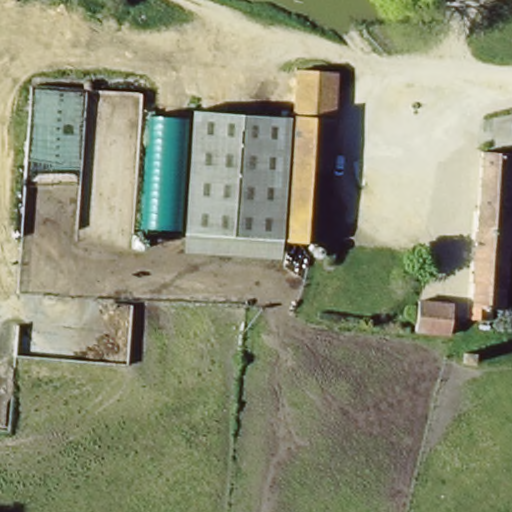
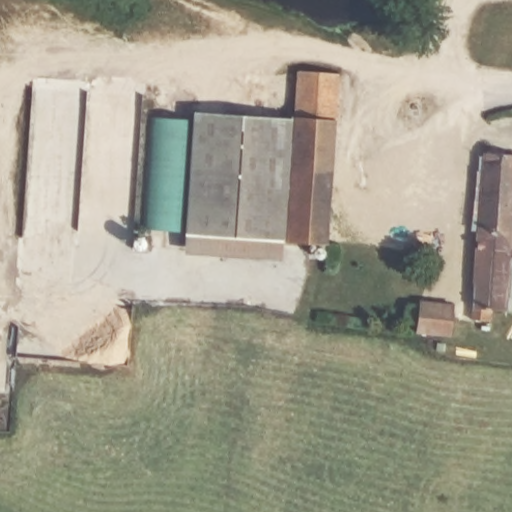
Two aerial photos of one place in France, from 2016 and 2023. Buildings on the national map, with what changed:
unchanged [(302,115),(303,76),(328,77),(327,117),(333,117),(324,240),(254,233),(264,113),(302,115)]
unchanged [(245,112),(235,231),(190,227),(197,109),(245,112)]
unchanged [(254,233),(235,231),(245,112),(264,113),(254,233)]
unchanged [(149,117),(187,120),(182,232),(142,231),(149,117)]
unchanged [(512,216),(512,246),(504,246),(500,309),(470,307),(480,142),(511,144),(507,216),(512,216)]
unchanged [(449,313),(447,330),(420,326),(422,308),(449,313)]

